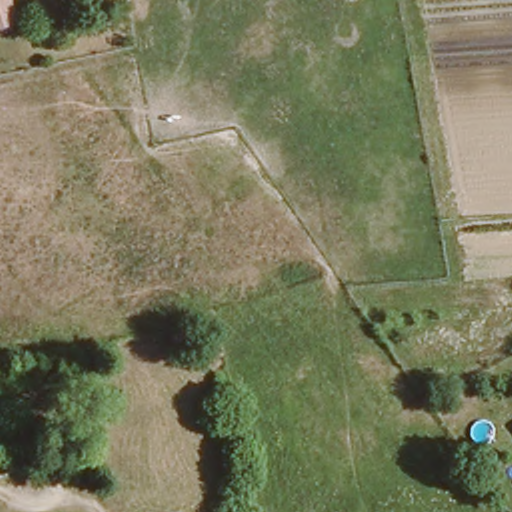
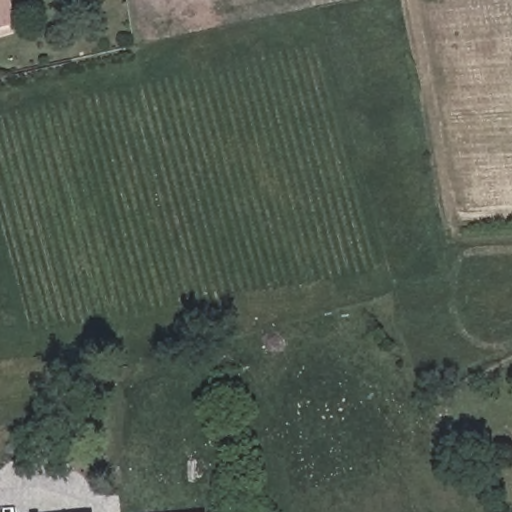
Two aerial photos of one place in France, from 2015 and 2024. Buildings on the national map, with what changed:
unchanged [(0,25),(0,0),(6,0),(11,22),(0,25)]

